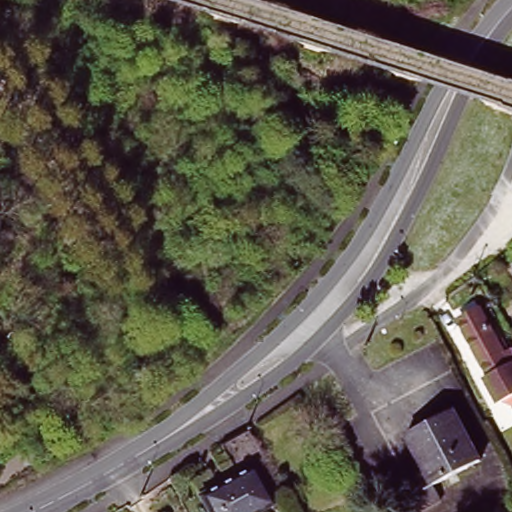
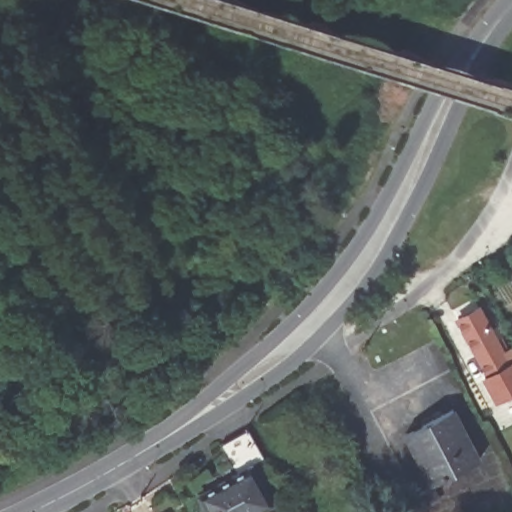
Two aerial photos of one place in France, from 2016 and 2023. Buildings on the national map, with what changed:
unchanged [(453,320),(482,306),(512,360),(512,397),(496,405),(483,378),(453,320)]
unchanged [(409,476),(428,464),(408,430),(454,402),(482,452),(437,479),(444,493),(426,502),(409,476)]
unchanged [(250,429),(265,459),(252,468),(274,505),(263,512),(207,512),(200,498),(241,475),(225,445),(250,429)]

